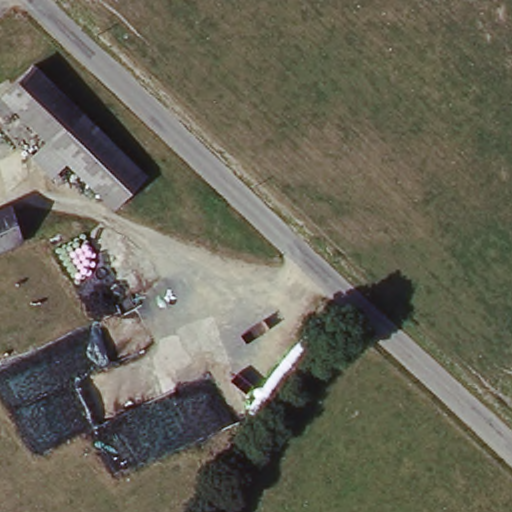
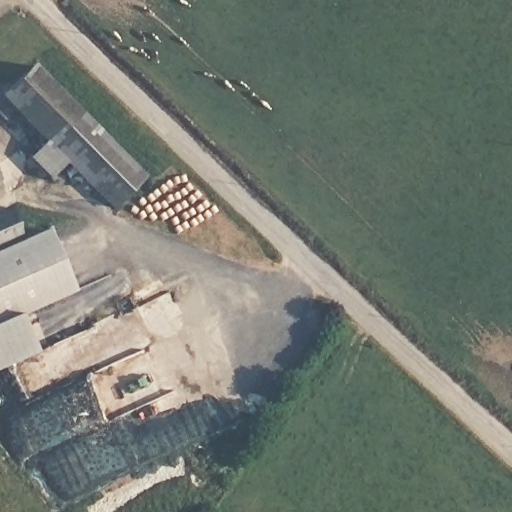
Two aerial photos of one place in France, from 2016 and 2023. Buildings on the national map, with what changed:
unchanged [(50,179),(30,158),(47,141),(16,110),(5,120),(0,115),(0,97),(34,65),(144,177),(114,207),(67,162),(50,179)]
new [(22,240),(47,227),(76,291),(20,317),(37,352),(0,369),(0,212),(11,207),(22,240)]
demolished [(0,213),(9,209),(22,240),(0,250),(0,213)]

